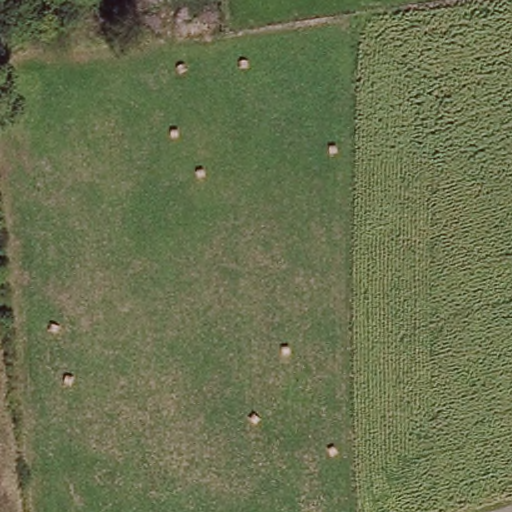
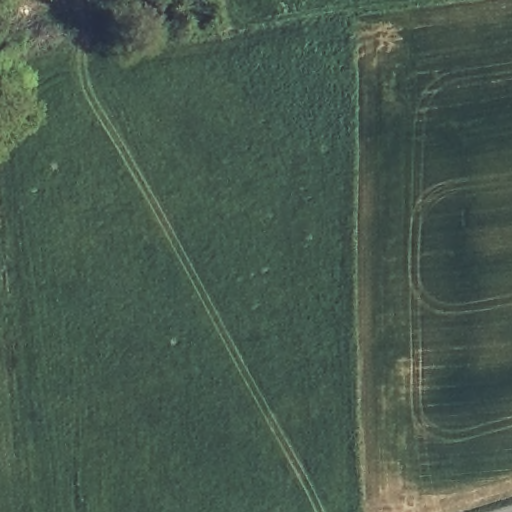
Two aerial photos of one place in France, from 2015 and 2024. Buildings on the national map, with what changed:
[]

